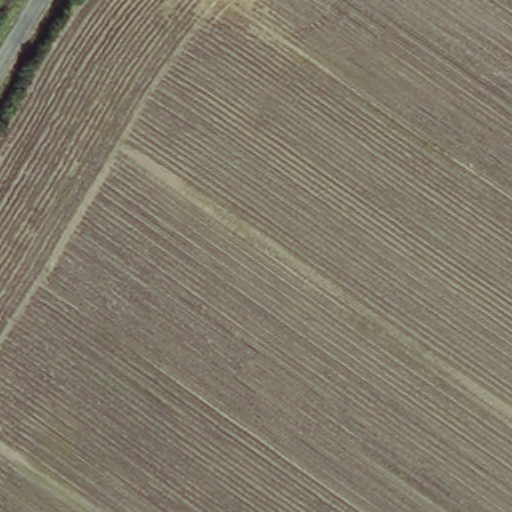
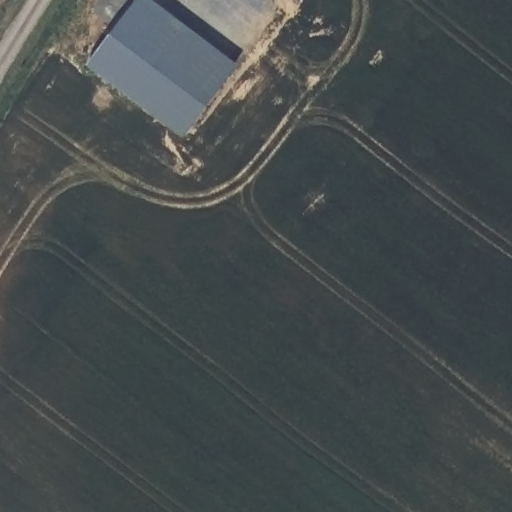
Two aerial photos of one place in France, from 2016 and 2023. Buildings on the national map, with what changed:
new [(168,0),(240,57),(186,135),(121,86),(92,59),(135,0),(168,0)]

